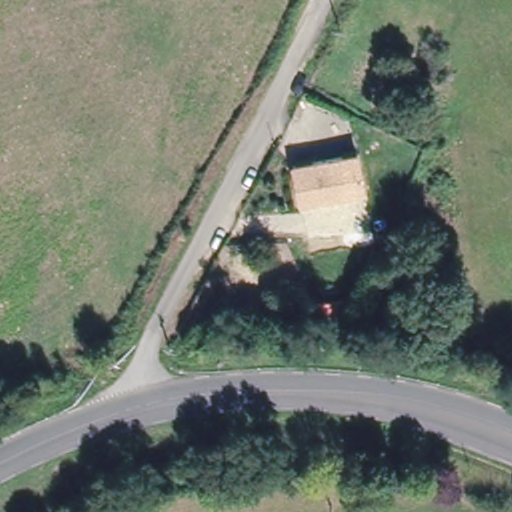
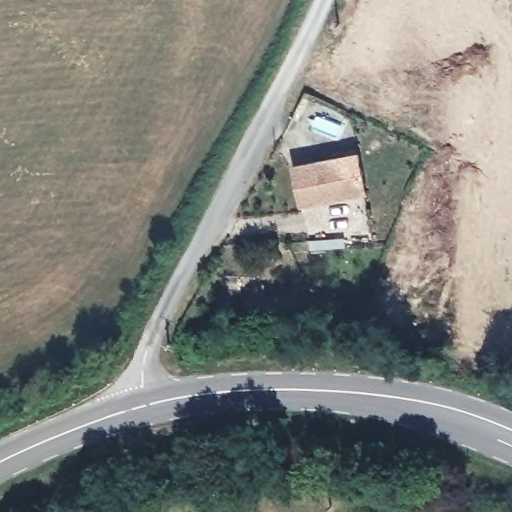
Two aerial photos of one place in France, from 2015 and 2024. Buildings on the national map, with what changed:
unchanged [(365,154),(368,199),(295,205),(292,160),(365,154)]

